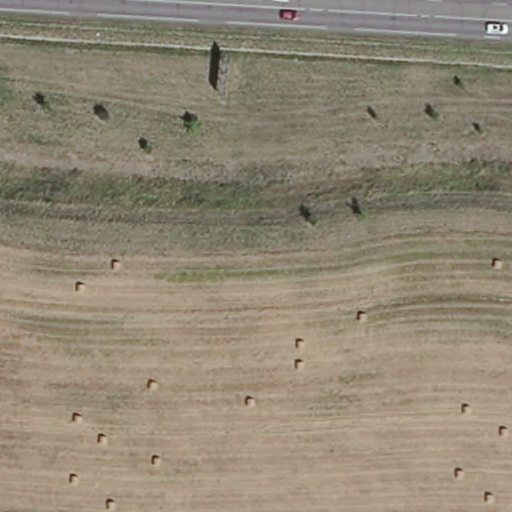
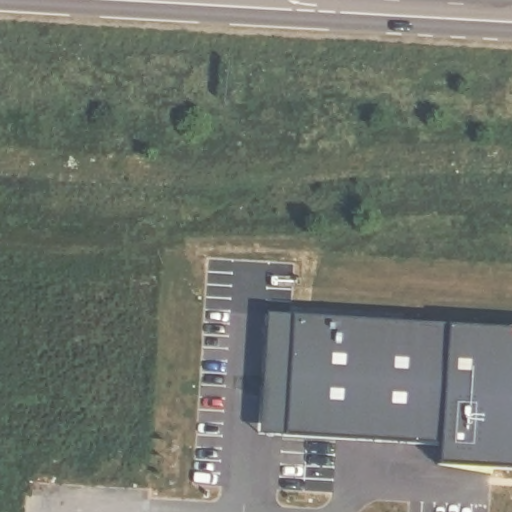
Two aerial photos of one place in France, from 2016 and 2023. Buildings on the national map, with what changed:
new [(512,329),(512,467),(452,465),(454,444),(270,433),(283,314),(512,329)]

